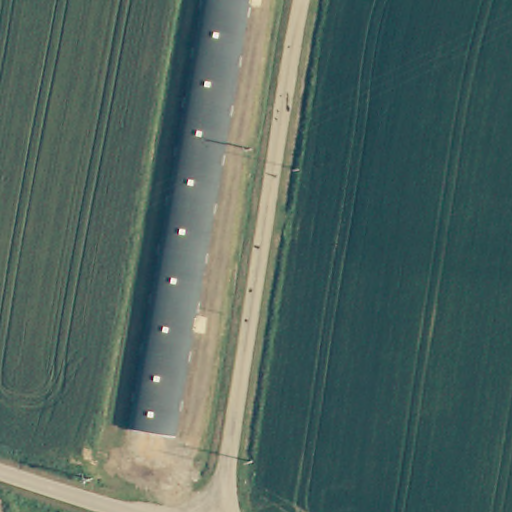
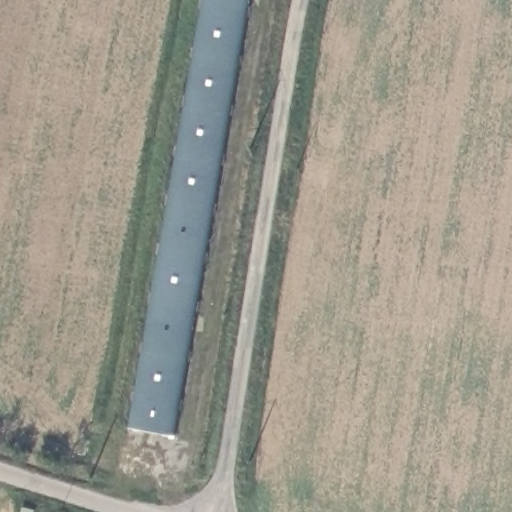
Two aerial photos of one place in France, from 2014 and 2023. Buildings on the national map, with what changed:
unchanged [(174,438),(127,430),(202,0),(250,0),(174,438)]

